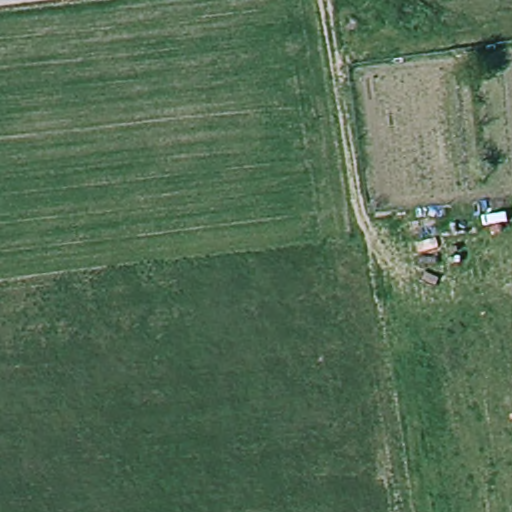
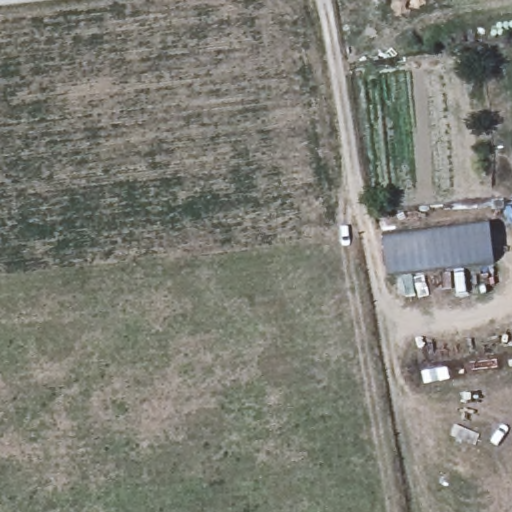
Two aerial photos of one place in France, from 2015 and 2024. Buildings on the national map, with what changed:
new [(496,263),(389,276),(384,238),(489,224),(496,263)]

